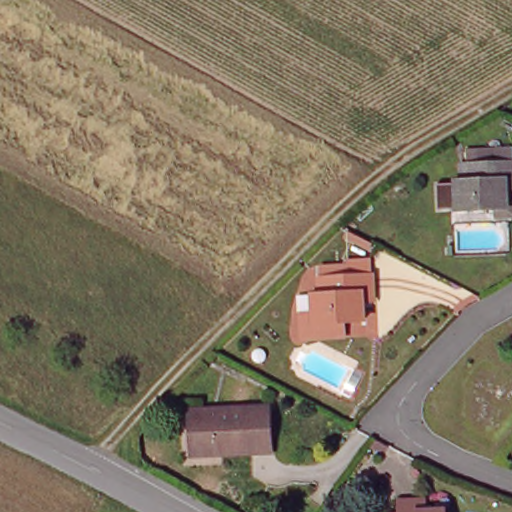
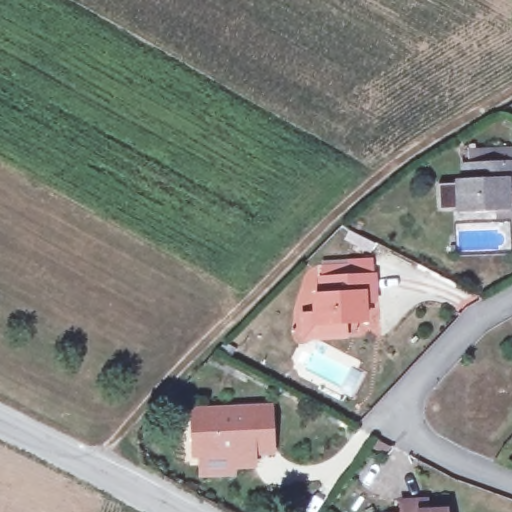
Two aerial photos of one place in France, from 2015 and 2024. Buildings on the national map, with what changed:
unchanged [(509,180),(499,181),(501,207),(454,209),(454,182),(462,181),(459,161),(507,159),(509,180)]
unchanged [(374,297),(358,299),(361,327),(312,328),(311,299),(321,299),(321,279),(372,277),(374,297)]
unchanged [(271,446),(193,452),(192,413),(268,406),(271,446)]
unchanged [(414,507),(442,505),(442,512),(380,512),(380,509),(394,508),(394,496),(414,496),(414,507)]

